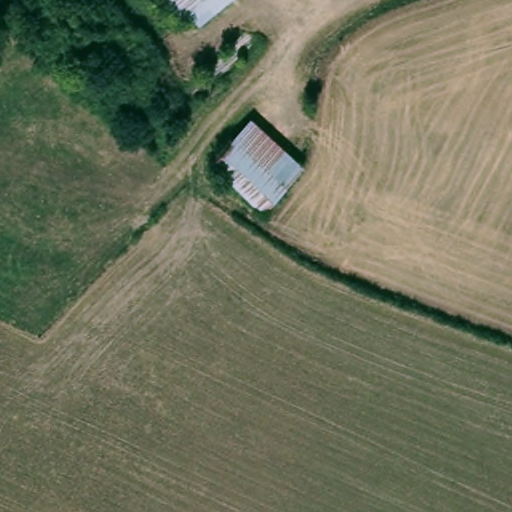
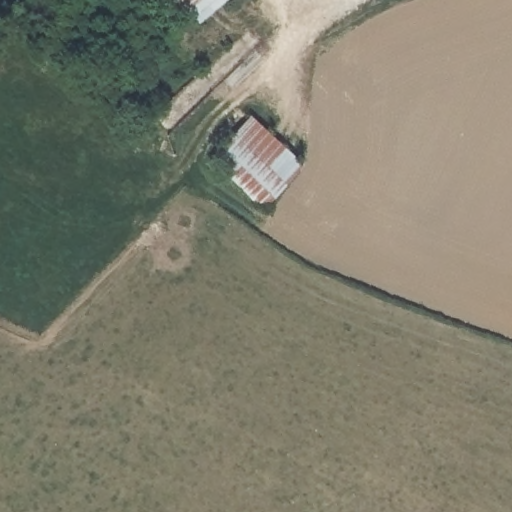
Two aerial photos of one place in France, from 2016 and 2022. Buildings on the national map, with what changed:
unchanged [(167,0),(227,0),(192,29),(167,0)]
unchanged [(305,166),(267,209),(211,161),(249,116),(305,166)]

